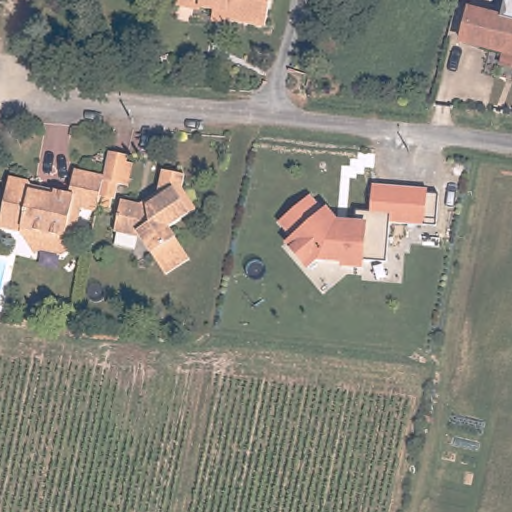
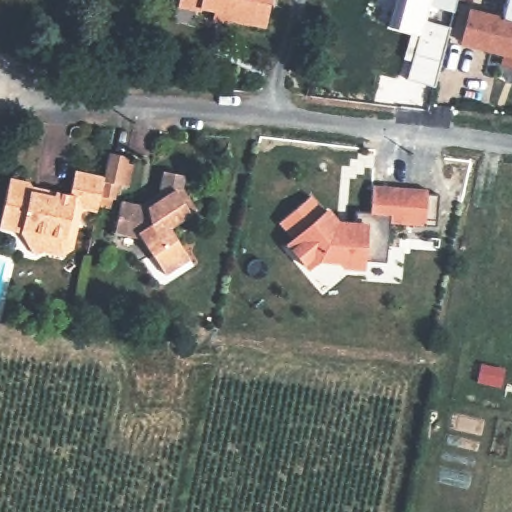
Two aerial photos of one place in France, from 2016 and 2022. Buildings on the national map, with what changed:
unchanged [(271,22),(230,14),(231,7),(205,2),(204,5),(180,0),(276,0),(271,22)]
new [(455,12),(430,5),(426,20),(450,26),(435,87),(406,80),(411,60),(402,59),(409,34),(395,31),(395,28),(388,26),(395,0),(458,0),(455,12)]
new [(470,1),(464,0),(470,0),(470,1)]
new [(502,14),(505,0),(512,0),(512,15),(511,16),(502,14)]
unchanged [(512,57),(502,55),(505,47),(461,37),(468,6),(511,16),(512,15),(512,57)]
new [(502,55),(512,57),(512,69),(497,65),(500,55),(460,44),(461,37),(505,47),(502,55)]
unchanged [(132,179),(109,175),(114,151),(136,155),(132,179)]
unchanged [(60,254),(42,248),(32,251),(28,241),(22,228),(1,222),(11,175),(35,180),(34,187),(57,194),(58,188),(72,191),(78,167),(109,175),(100,210),(82,206),(72,247),(60,254)]
unchanged [(147,203),(160,195),(165,167),(186,172),(184,185),(198,207),(171,224),(191,255),(166,271),(139,228),(115,222),(121,196),(147,203)]
unchanged [(436,226),(390,223),(386,263),(363,261),(362,268),(342,267),(343,263),(327,261),(317,261),(308,269),(287,245),(293,240),(278,224),(310,196),(324,213),(326,210),(335,220),(337,223),(355,224),(356,211),(370,212),(372,186),(427,190),(427,194),(439,195),(436,226)]

